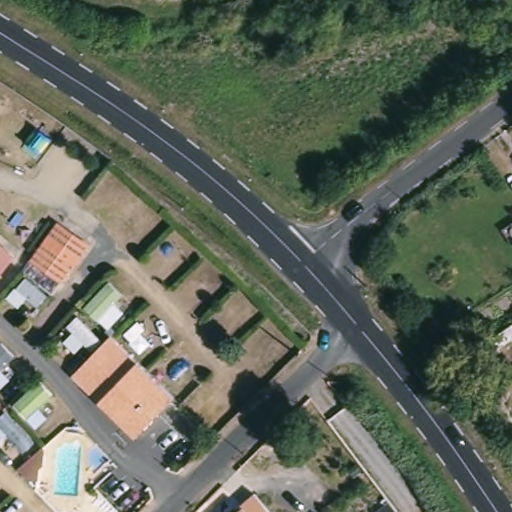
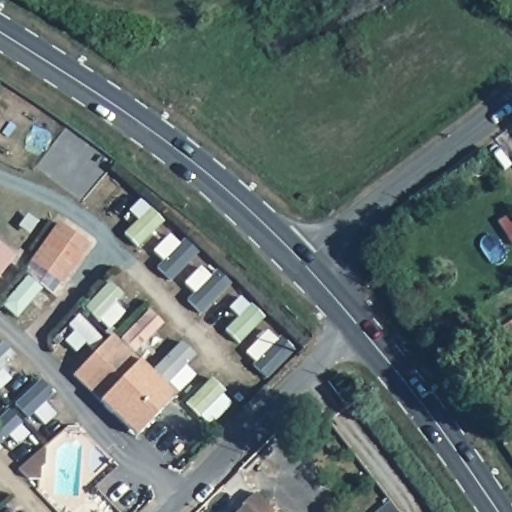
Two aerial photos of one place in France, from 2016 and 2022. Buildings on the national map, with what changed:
unchanged [(88,249),(52,298),(24,276),(59,229),(88,249)]
unchanged [(13,262),(0,279),(0,251),(13,262)]
unchanged [(110,417),(71,380),(109,340),(173,401),(139,437),(135,441),(110,417)]
unchanged [(46,453),(37,473),(23,473),(17,467),(39,446),(46,453)]
unchanged [(238,512),(243,507),(241,505),(255,493),(271,512),(238,512)]

